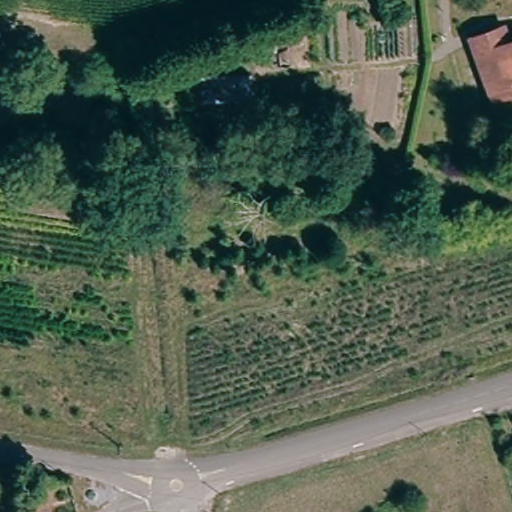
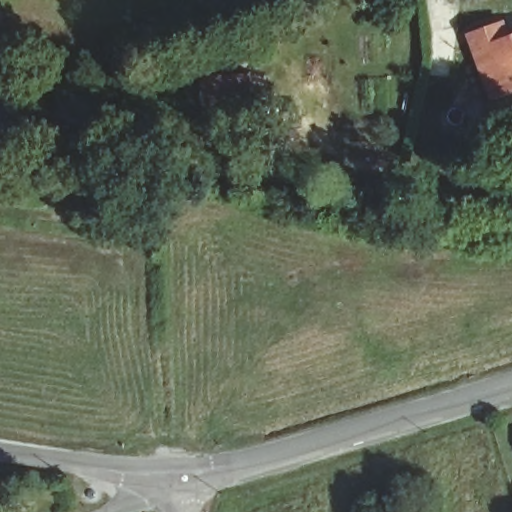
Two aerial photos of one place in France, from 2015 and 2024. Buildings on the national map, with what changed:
unchanged [(473,42),(501,29),(507,42),(512,40),(512,94),(498,100),(473,42)]
unchanged [(254,105),(200,108),(198,78),(253,73),(254,105)]

